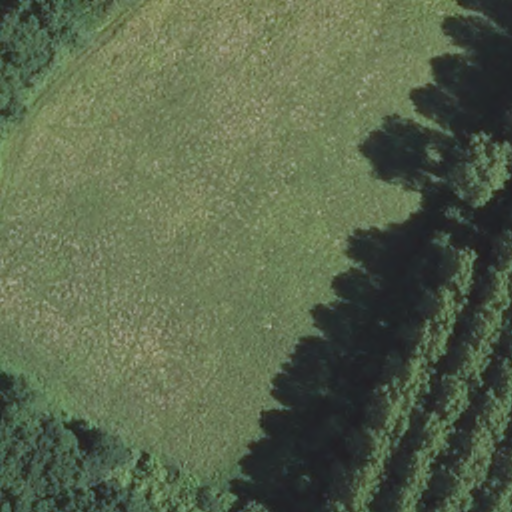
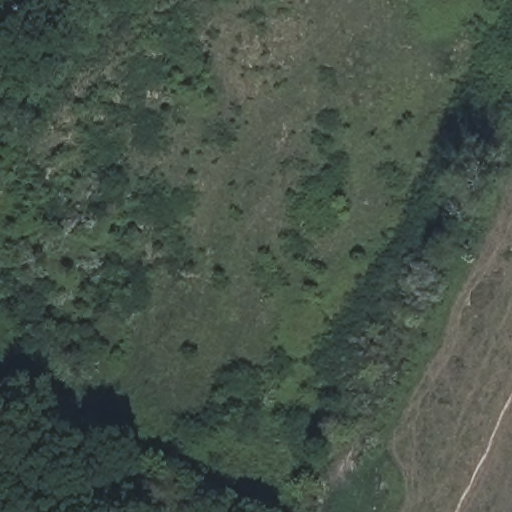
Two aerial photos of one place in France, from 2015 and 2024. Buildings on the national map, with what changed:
[]

